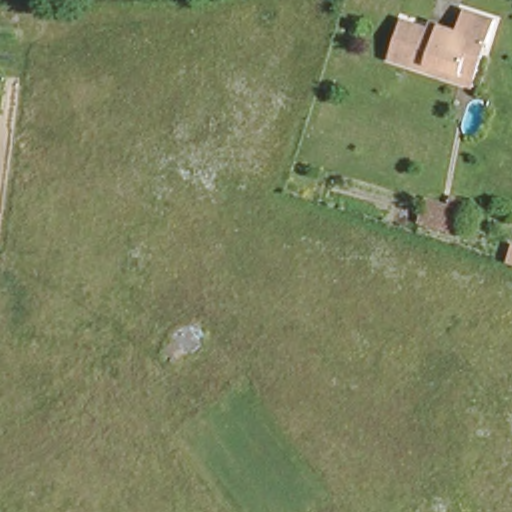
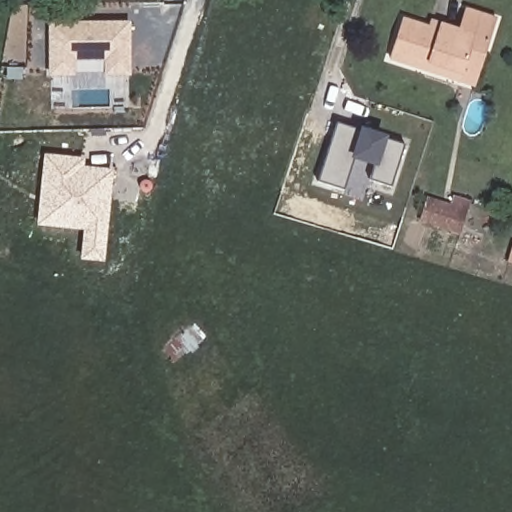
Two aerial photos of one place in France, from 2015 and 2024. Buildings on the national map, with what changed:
unchanged [(422,64),(389,54),(401,11),(422,17),(424,9),(436,13),(456,20),(461,0),(467,0),(495,8),(487,32),(473,80),(422,64)]
new [(131,76),(104,76),(104,72),(76,72),(76,76),(49,76),(49,22),(131,21),(131,76)]
new [(354,155),(343,189),(319,181),(337,124),(358,129),(387,139),(404,145),(391,186),(372,180),(378,162),(354,155)]
new [(84,158),(84,166),(114,169),(105,261),(80,258),(84,231),(37,226),(44,154),(84,158)]
unchanged [(462,238),(423,226),(430,204),(469,215),(462,238)]

